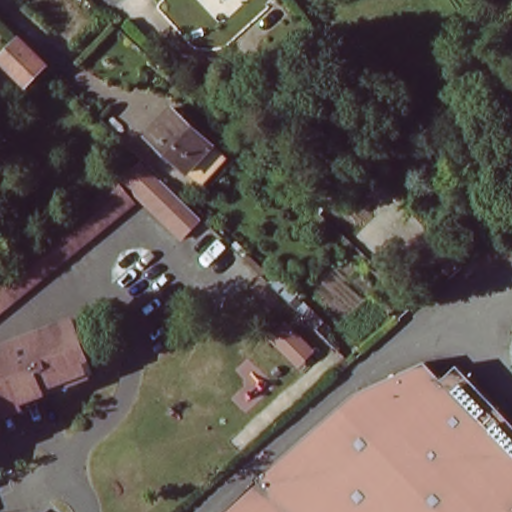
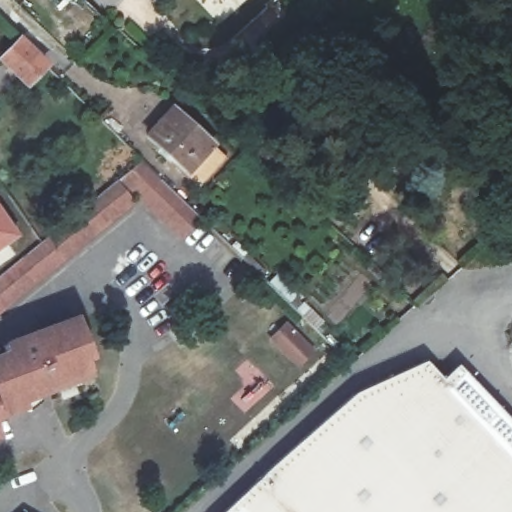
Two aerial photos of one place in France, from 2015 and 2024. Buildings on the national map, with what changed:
unchanged [(28,87),(0,61),(0,57),(17,39),(47,68),(28,87)]
unchanged [(152,141),(177,113),(217,150),(191,178),(152,141)]
unchanged [(203,219),(185,242),(127,183),(148,164),(203,219)]
unchanged [(0,274),(115,180),(135,203),(0,314),(0,274)]
new [(0,249),(0,207),(20,234),(0,249)]
unchanged [(348,243),(353,237),(413,291),(407,298),(348,243)]
unchanged [(240,257),(245,253),(265,272),(260,276),(240,257)]
unchanged [(267,283),(275,274),(300,297),(296,300),(299,303),(293,309),(267,283)]
unchanged [(0,343),(75,314),(93,359),(87,362),(92,377),(25,403),(27,409),(0,420),(0,353),(4,351),(0,343)]
unchanged [(275,467),(357,402),(380,389),(427,362),(448,384),(464,369),(478,385),(512,421),(512,512),(227,512),(275,467)]

